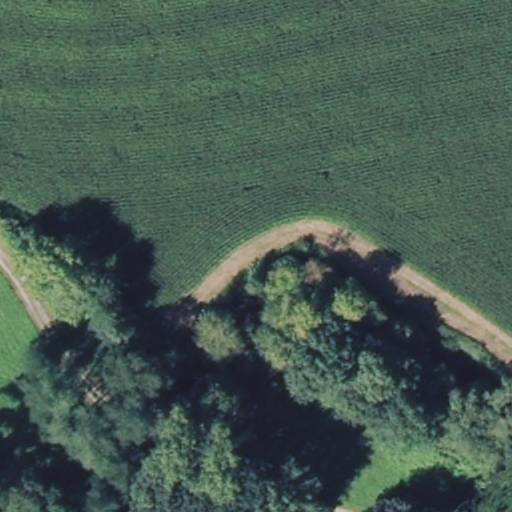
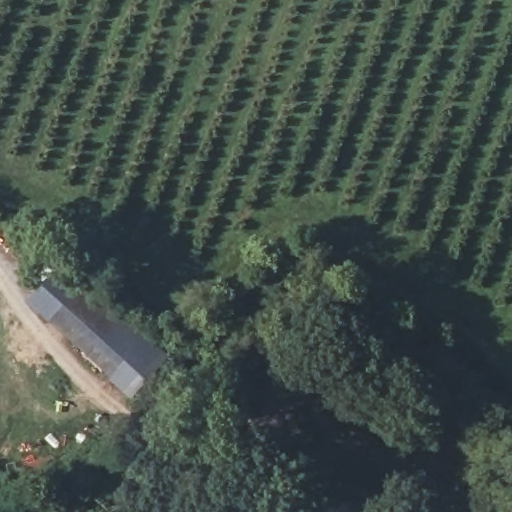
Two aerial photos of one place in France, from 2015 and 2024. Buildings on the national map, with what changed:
new [(54,271),(56,272),(59,269),(63,272),(71,278),(74,281),(105,302),(168,355),(131,399),(70,342),(24,301),(54,271)]

